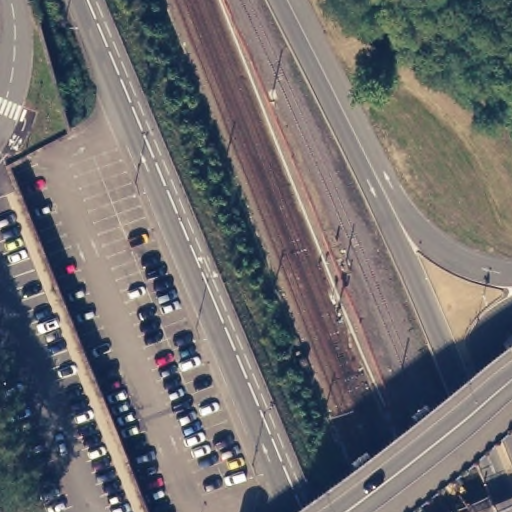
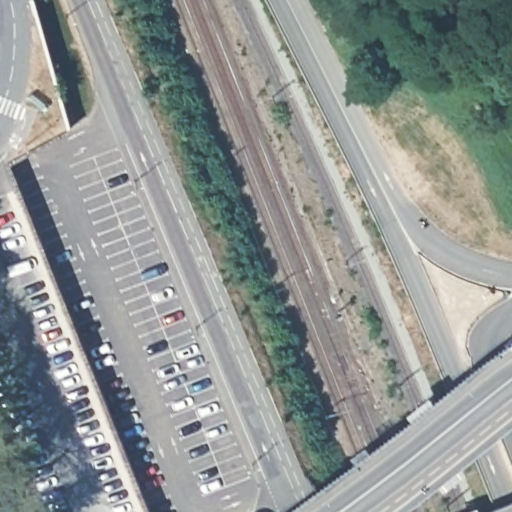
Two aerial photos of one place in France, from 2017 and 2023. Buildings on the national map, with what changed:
unchanged [(305,371),(302,363),(307,360),(310,367),(305,371)]

